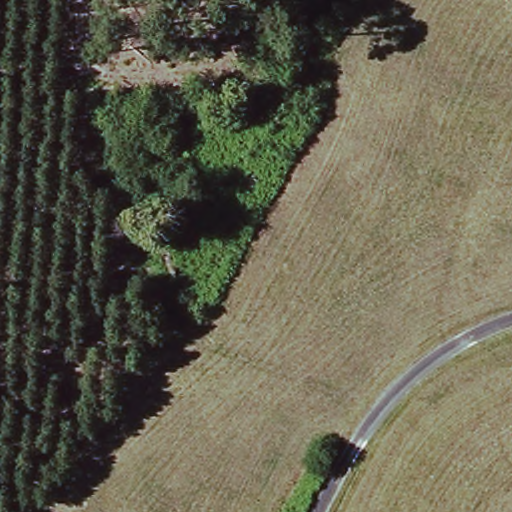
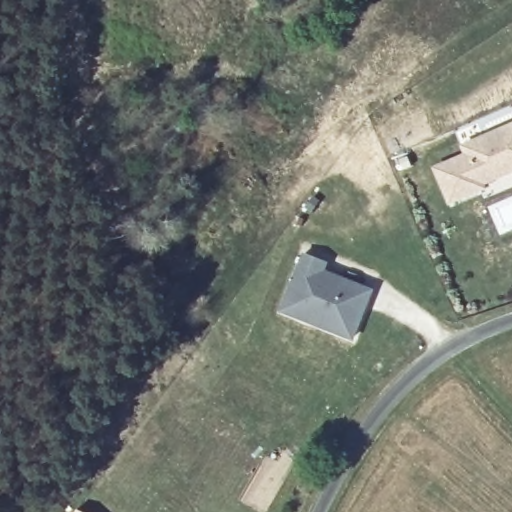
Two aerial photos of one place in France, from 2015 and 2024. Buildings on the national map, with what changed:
new [(468,154),(464,145),(485,136),(487,140),(492,137),(493,133),(512,124),(512,171),(484,183),(485,186),(452,202),(436,168),(468,154)]
new [(303,253),(329,263),(327,271),(374,289),(354,341),(279,312),(303,253)]

